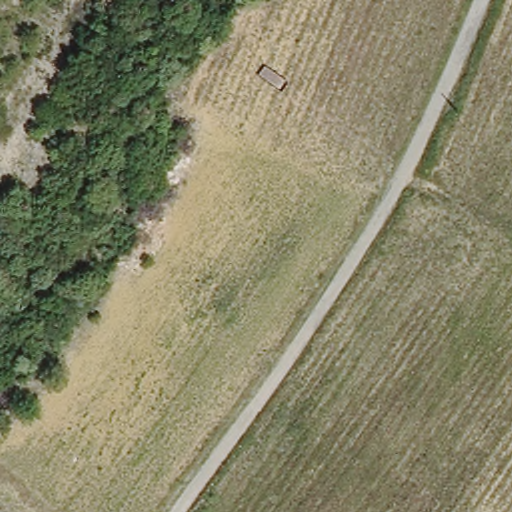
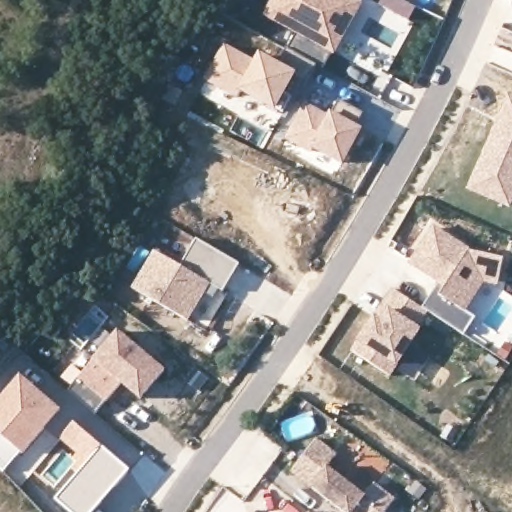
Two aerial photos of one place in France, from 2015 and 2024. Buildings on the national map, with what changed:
new [(288,49),(297,34),(264,15),(272,0),(357,0),(361,3),(324,68),(288,49)]
new [(204,80),(225,44),(257,59),(260,54),(296,73),(275,111),(239,90),(235,97),(204,80)]
new [(512,101),(512,196),(508,205),(470,189),(508,99),(512,101)]
new [(342,165),(311,149),(308,153),(286,139),(305,102),(330,114),(340,100),(363,113),(356,125),(362,129),(342,165)]
new [(469,337),(457,329),(433,314),(429,311),(445,285),(416,267),(439,232),(474,254),(508,264),(502,288),(486,284),(467,314),(479,321),(469,337)]
new [(207,294),(190,323),(134,289),(156,253),(182,268),(198,242),(241,267),(225,294),(221,290),(216,299),(207,294)]
new [(388,309),(400,292),(429,311),(433,314),(422,330),(425,333),(395,379),(358,355),(381,320),(388,309)]
new [(98,364),(122,385),(106,403),(96,415),(68,391),(71,387),(61,378),(72,365),(83,373),(93,359),(117,331),(122,335),(98,364)]
new [(122,335),(167,375),(143,403),(124,387),(98,364),(122,335)]
new [(0,470),(0,396),(19,375),(58,409),(2,472),(0,470)]
new [(102,446),(87,463),(60,439),(74,422),(102,446)]
new [(321,438),(342,454),(332,466),(369,494),(379,483),(400,499),(390,512),(347,512),(295,471),(321,438)]
new [(58,493),(102,446),(130,469),(92,512),(68,512),(53,498),(58,493)]
new [(314,511),(315,512),(312,512),(314,511)]

